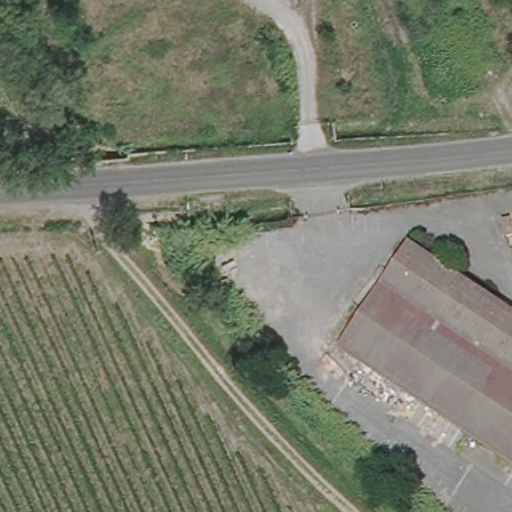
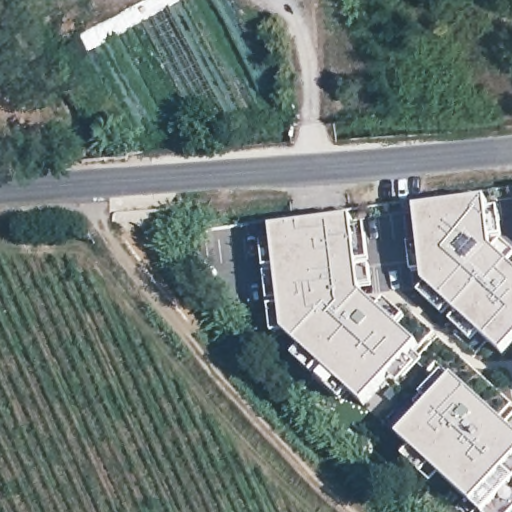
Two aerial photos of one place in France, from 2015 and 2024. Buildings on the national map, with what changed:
unchanged [(355,27),(354,27),(352,27),(350,26),(350,25),(350,24),(352,22),(353,21),(355,21),(356,22),(357,23),(357,25),(356,26),(355,27)]
new [(492,249),(512,268),(512,347),(504,356),(426,285),(419,211),(487,202),(492,249)]
new [(354,220),(364,296),(420,347),(364,406),(286,336),(275,230),(354,220)]
demolished [(414,247),(512,312),(512,466),(343,354),(414,247)]
new [(481,512),(474,506),(399,440),(455,378),(512,432),(512,512),(481,512)]

